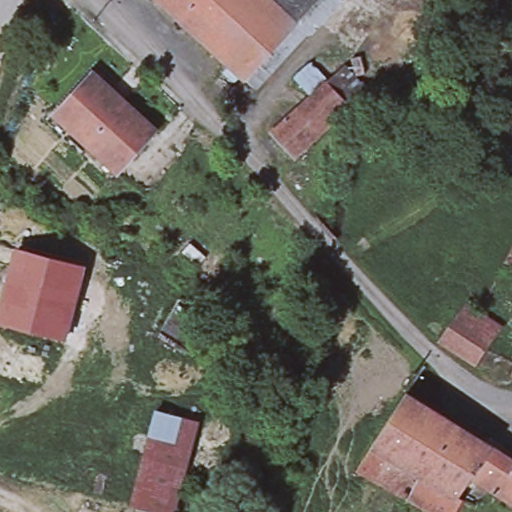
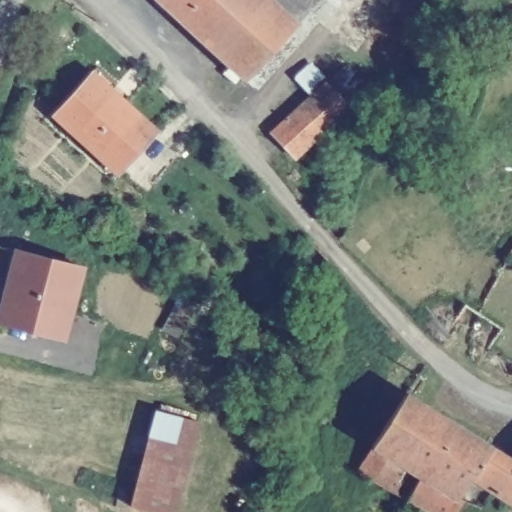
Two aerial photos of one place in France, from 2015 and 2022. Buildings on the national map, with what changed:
unchanged [(160,0),(194,0),(178,17),(160,0)]
unchanged [(178,17),(194,0),(256,0),(212,48),(178,17)]
unchanged [(271,0),(292,20),(241,75),(212,48),(256,0),(271,0)]
unchanged [(271,0),(311,0),(292,20),(271,0)]
unchanged [(292,160),(270,134),(309,96),(292,78),(307,64),(325,82),(349,108),(292,160)]
unchanged [(149,130),(111,169),(48,111),(85,72),(149,130)]
unchanged [(0,301),(15,249),(85,265),(65,340),(0,324),(0,301)]
unchanged [(158,327),(176,297),(190,307),(173,337),(158,327)]
unchanged [(463,305),(500,330),(485,353),(475,368),(438,344),(463,305)]
unchanged [(354,471),(404,396),(441,419),(427,439),(452,458),(446,467),(468,481),(456,499),(461,503),(455,512),(425,512),(402,499),(354,471)]
unchanged [(126,503),(151,409),(190,419),(165,512),(156,512),(126,503)]
unchanged [(512,463),(512,473),(498,495),(496,498),(468,481),(446,467),(452,458),(427,439),(441,419),(512,463)]
unchanged [(498,495),(512,473),(512,505),(498,495)]

